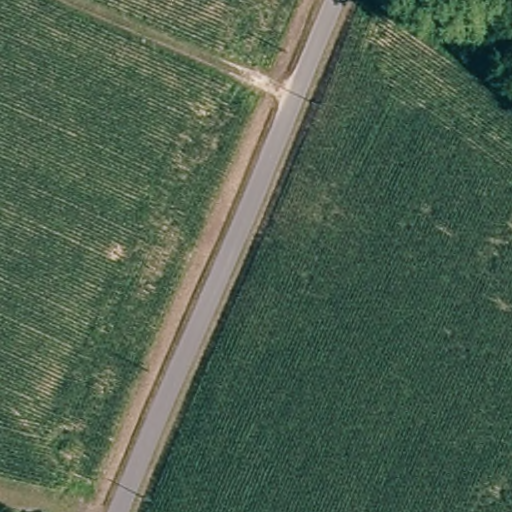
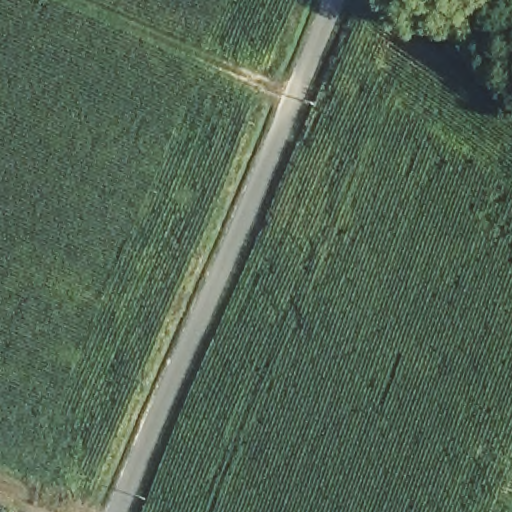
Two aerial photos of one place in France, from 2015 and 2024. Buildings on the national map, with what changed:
[]

